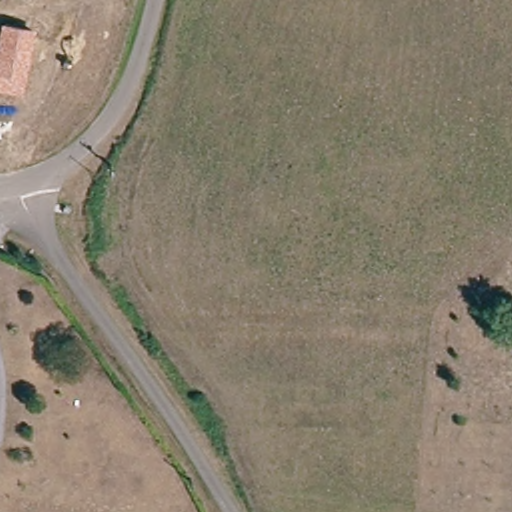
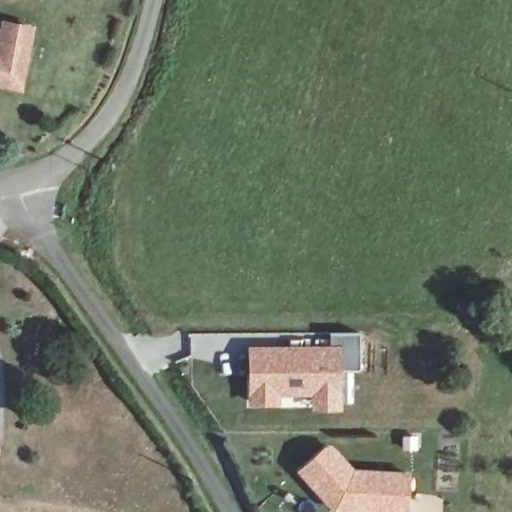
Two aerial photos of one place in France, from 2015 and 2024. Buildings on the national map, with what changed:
unchanged [(0,19),(36,26),(24,91),(0,87),(0,19)]
new [(311,410),(311,396),(280,396),(280,405),(248,405),(248,344),(330,345),(330,333),(361,332),(361,369),(341,370),(342,411),(311,410)]
new [(327,444),(336,446),(355,468),(409,471),(407,512),(334,512),(296,469),(327,444)]

